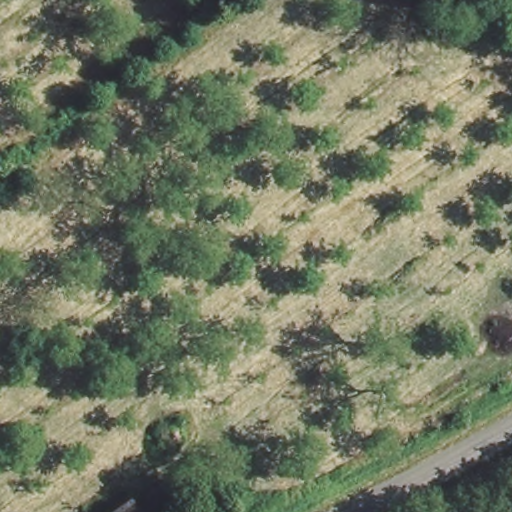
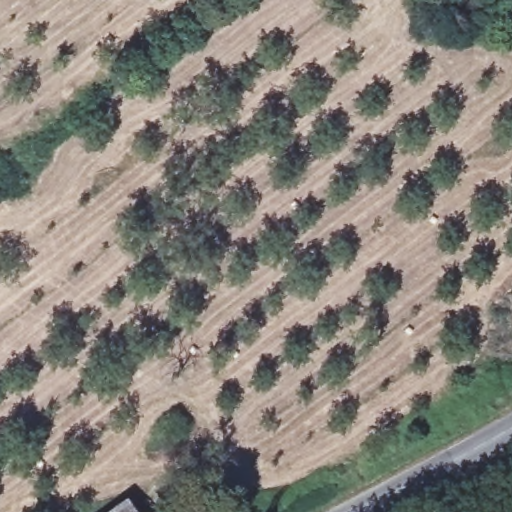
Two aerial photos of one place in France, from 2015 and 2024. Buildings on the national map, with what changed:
unchanged [(139,512),(105,512),(129,496),(139,512)]

